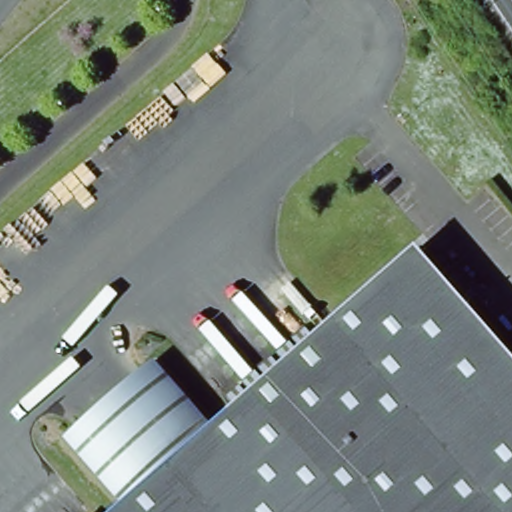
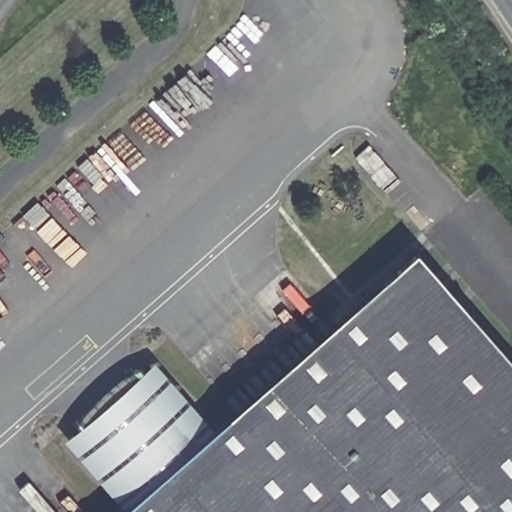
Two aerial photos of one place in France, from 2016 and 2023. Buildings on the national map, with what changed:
unchanged [(207,431),(416,247),(512,356),(512,512),(116,512),(134,496),(207,431)]
unchanged [(134,496),(83,439),(156,374),(207,431),(134,496)]

